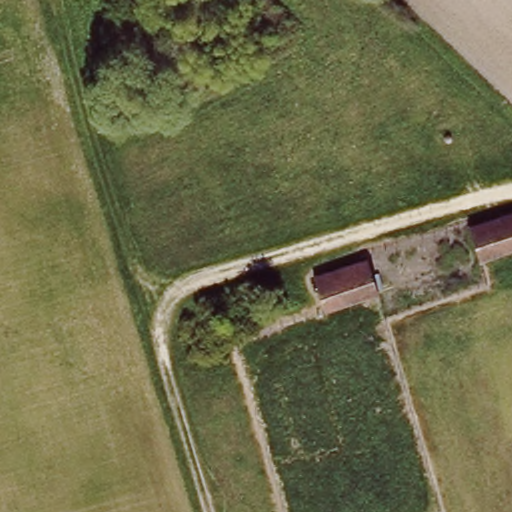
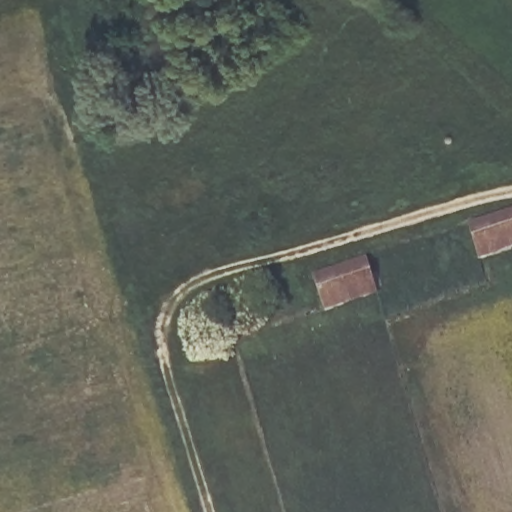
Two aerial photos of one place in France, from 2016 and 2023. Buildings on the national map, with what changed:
unchanged [(468,230),(512,215),(512,256),(480,267),(468,230)]
unchanged [(310,276),(367,258),(382,294),(325,313),(310,276)]

